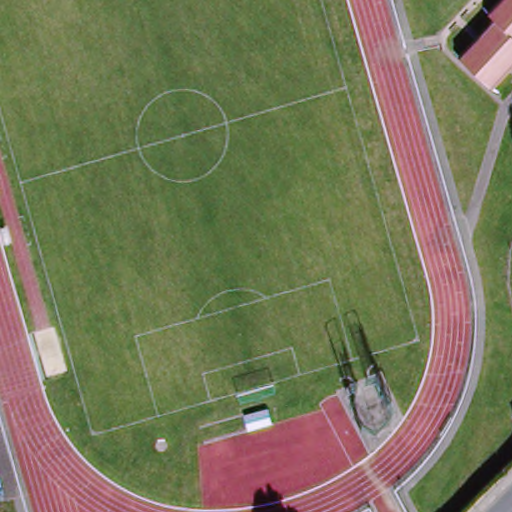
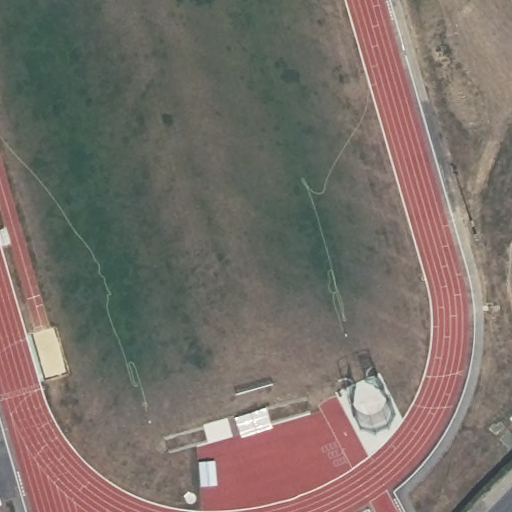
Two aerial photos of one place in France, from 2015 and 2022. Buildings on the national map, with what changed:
demolished [(487,17),(502,0),(512,0),(512,64),(488,90),(458,61),(493,24),(487,17)]

